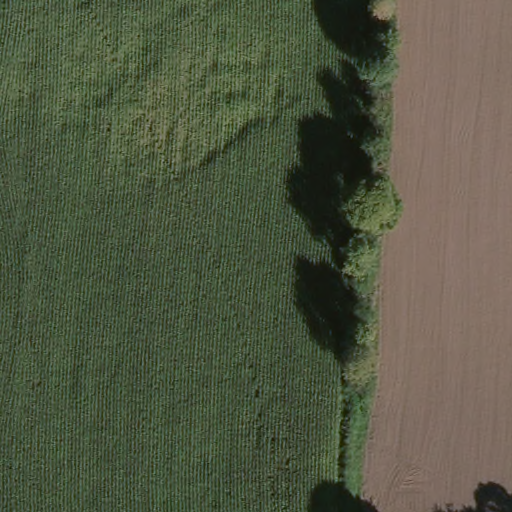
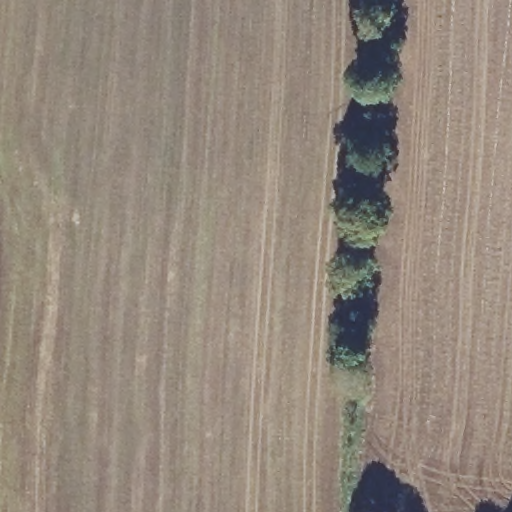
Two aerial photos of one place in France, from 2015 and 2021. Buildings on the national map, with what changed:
[]

